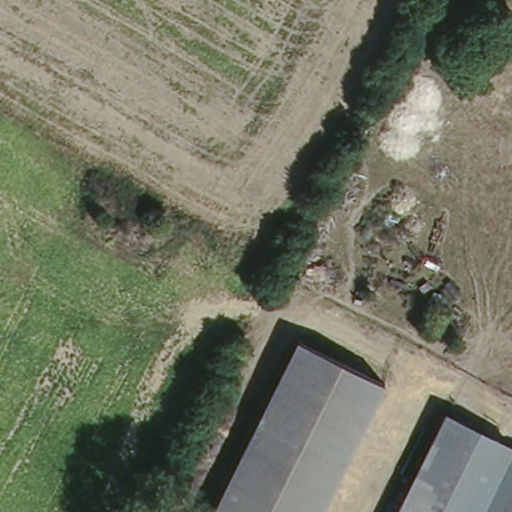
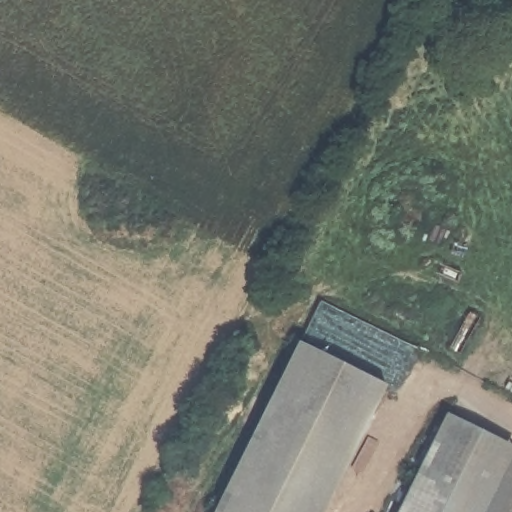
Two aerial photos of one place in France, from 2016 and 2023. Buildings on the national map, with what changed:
unchanged [(383,388),(324,512),(218,512),(295,345),(383,388)]
unchanged [(463,422),(412,512),(401,512),(447,415),(463,422)]
unchanged [(509,442),(476,512),(412,512),(463,422),(509,442)]
unchanged [(476,512),(509,442),(512,444),(512,512),(476,512)]

